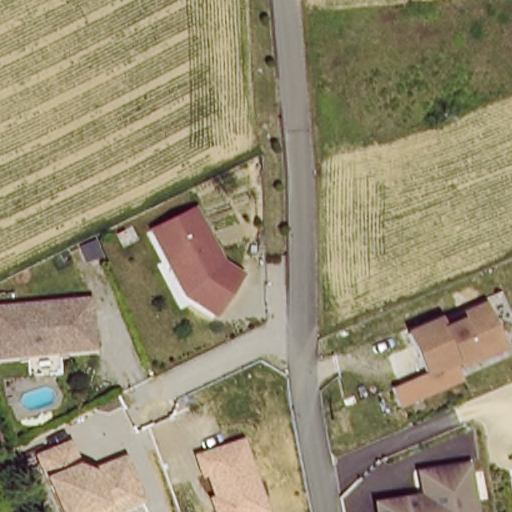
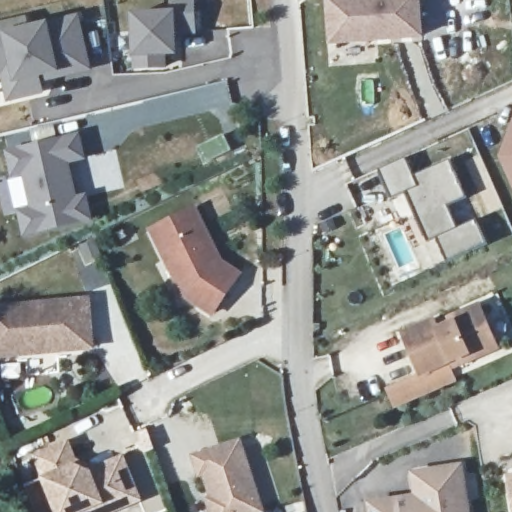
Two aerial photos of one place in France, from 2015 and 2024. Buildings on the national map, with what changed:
new [(178,57),(167,56),(168,70),(134,70),(134,57),(132,13),(170,11),(169,0),(196,0),(197,36),(178,36),(178,57)]
new [(328,46),(324,0),(421,0),(424,39),(328,46)]
new [(29,16),(32,25),(48,21),(50,25),(79,14),(95,70),(44,85),(46,96),(8,105),(2,77),(0,78),(0,24),(29,16)]
new [(512,125),(512,187),(499,159),(512,125)]
new [(80,133),(88,160),(72,164),(78,196),(87,194),(93,222),(25,239),(17,209),(30,205),(23,178),(12,181),(5,151),(80,133)]
new [(405,158),(413,176),(449,160),(467,199),(448,207),(457,228),(476,218),(488,244),(447,262),(437,239),(428,244),(414,213),(420,210),(411,190),(390,200),(378,171),(405,158)]
unchanged [(160,256),(145,227),(188,205),(214,258),(232,270),(206,310),(187,297),(177,291),(160,256)]
unchanged [(87,302),(92,349),(0,359),(0,311),(87,302)]
unchanged [(386,388),(419,374),(401,331),(437,317),(439,320),(482,302),(503,350),(454,372),(458,381),(396,409),(386,388)]
unchanged [(205,500),(210,497),(204,477),(199,478),(190,455),(243,439),(266,512),(210,512),(205,500)]
unchanged [(42,478),(32,456),(69,443),(75,460),(97,467),(126,455),(144,503),(120,512),(58,512),(42,478)]
unchanged [(461,464),(468,512),(364,512),(362,501),(409,495),(406,470),(461,464)]
unchanged [(512,474),(512,512),(511,512),(505,475),(512,474)]

